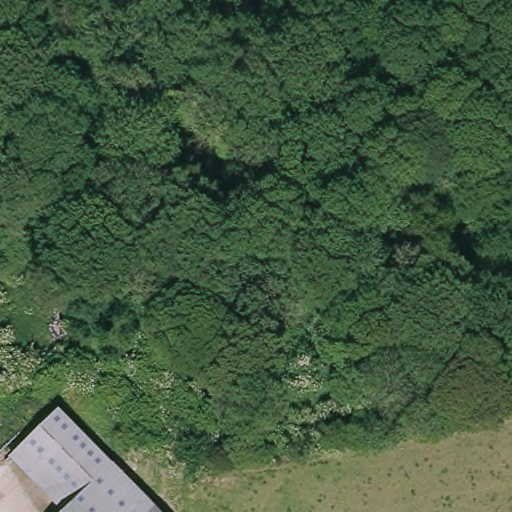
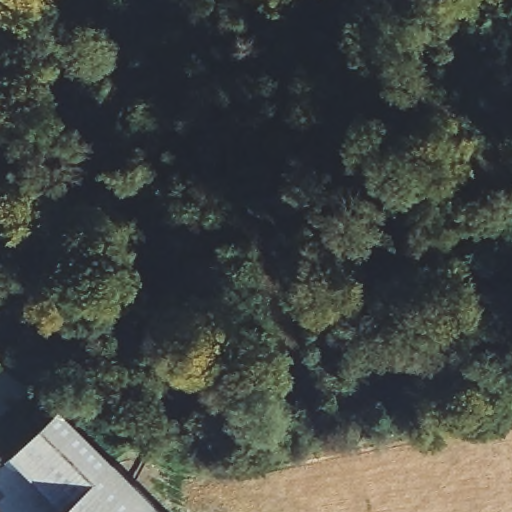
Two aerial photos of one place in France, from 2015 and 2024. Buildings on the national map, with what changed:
unchanged [(60,409),(159,507),(154,512),(63,512),(10,457),(60,409)]
unchanged [(164,512),(154,512),(159,507),(164,512)]

